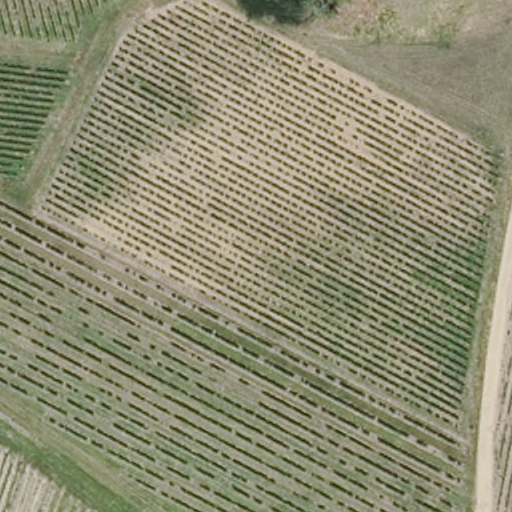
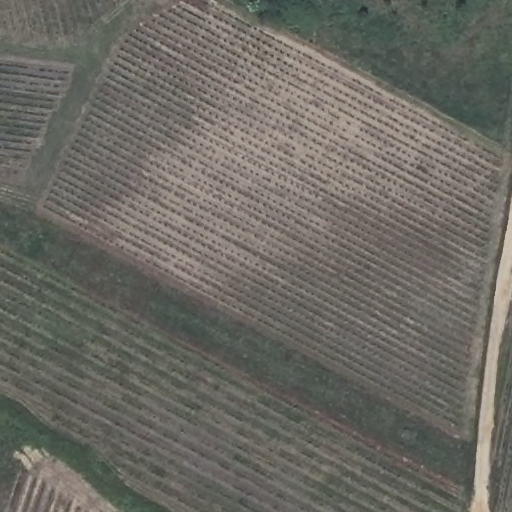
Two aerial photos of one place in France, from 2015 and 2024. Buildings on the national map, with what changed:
[]

